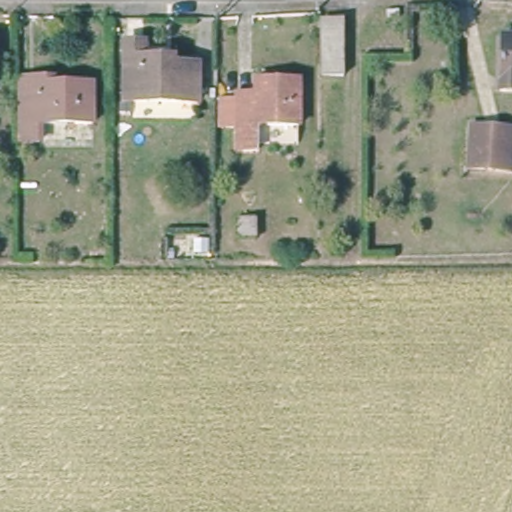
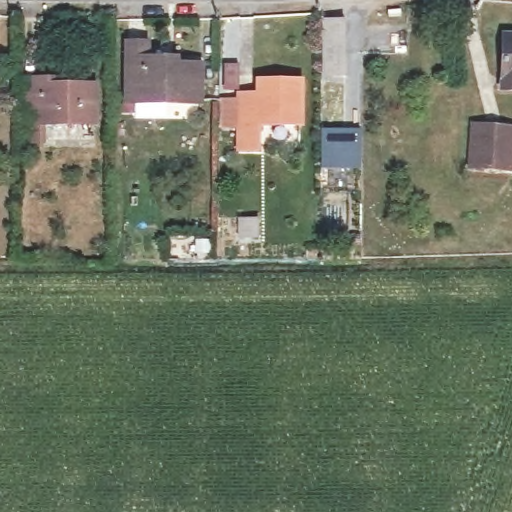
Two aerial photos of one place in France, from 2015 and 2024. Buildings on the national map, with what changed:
unchanged [(347,18),(346,75),(325,75),(325,19),(347,18)]
unchanged [(512,79),(506,79),(505,26),(512,26),(512,79)]
demolished [(401,29),(400,45),(386,45),(386,29),(401,29)]
unchanged [(139,40),(140,56),(159,56),(160,63),(183,65),(182,95),(119,98),(117,41),(139,40)]
unchanged [(305,74),(305,118),(264,118),(264,142),(245,142),(245,120),(228,120),(228,94),(245,94),(245,88),(262,88),(260,74),(305,74)]
unchanged [(45,78),(46,83),(87,84),(87,122),(30,122),(30,110),(17,110),(16,78),(45,78)]
unchanged [(512,126),(512,166),(467,164),(472,122),(512,126)]
new [(320,126),(362,126),(361,167),(320,167),(320,126)]
unchanged [(260,220),(260,234),(244,234),(245,220),(260,220)]

